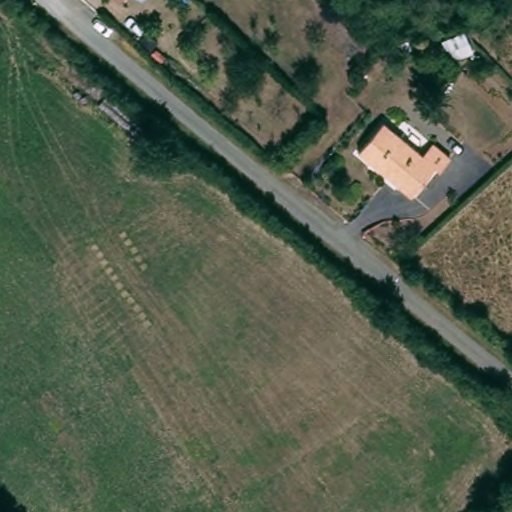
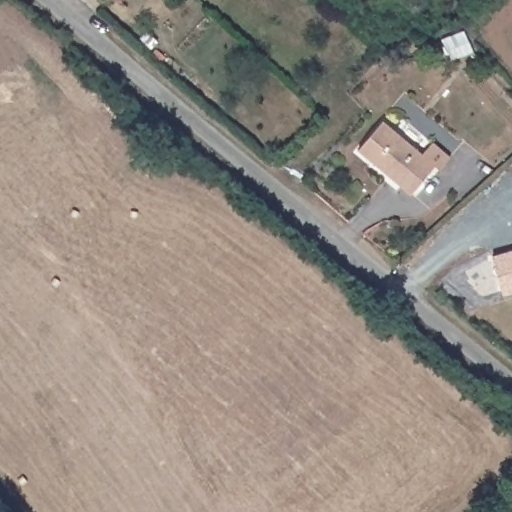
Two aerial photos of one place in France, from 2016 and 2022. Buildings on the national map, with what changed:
unchanged [(435,167),(410,194),(358,148),(381,120),(435,167)]
new [(502,295),(491,257),(512,251),(512,293),(502,295)]

